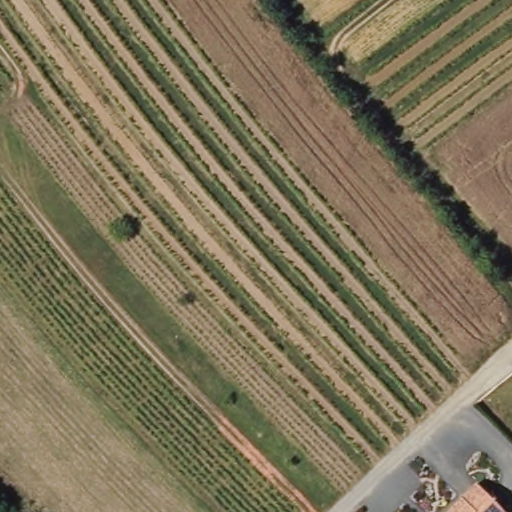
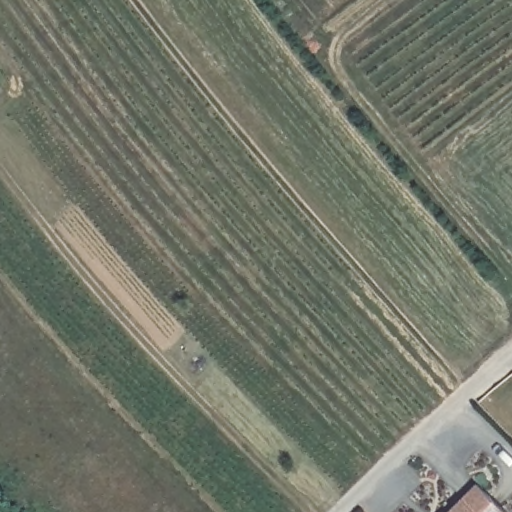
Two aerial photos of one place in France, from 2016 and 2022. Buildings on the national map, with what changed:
unchanged [(483,485),(512,507),(512,512),(463,512),(483,485)]

